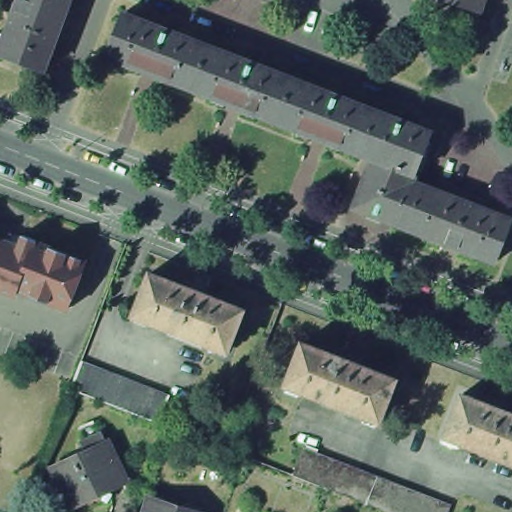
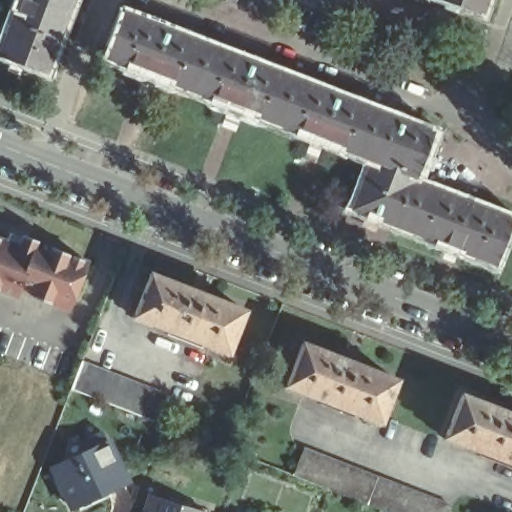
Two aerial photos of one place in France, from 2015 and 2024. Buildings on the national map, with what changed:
unchanged [(0,57),(0,32),(12,0),(64,0),(36,71),(0,57)]
unchanged [(460,0),(477,0),(475,5),(460,0)]
unchanged [(425,136),(407,185),(507,224),(491,266),(349,211),(366,169),(369,163),(100,59),(117,16),(425,136)]
unchanged [(4,237),(17,242),(17,239),(32,245),(32,246),(82,265),(63,314),(12,295),(11,300),(0,297),(0,245),(1,245),(4,237)]
unchanged [(239,314),(225,353),(207,347),(206,349),(146,325),(147,323),(129,316),(145,277),(239,314)]
unchanged [(391,383),(375,423),(359,416),(357,418),(297,395),(298,393),(282,386),(297,347),(391,383)]
unchanged [(71,361),(160,395),(150,423),(60,388),(71,361)]
unchanged [(512,417),(512,463),(512,464),(452,441),(452,439),(436,433),(451,393),(512,417)]
unchanged [(67,510),(47,472),(80,454),(75,446),(94,436),(98,444),(119,482),(67,510)]
unchanged [(297,452),(446,509),(444,512),(370,512),(345,502),(322,493),(287,480),(297,452)]
unchanged [(145,493),(202,510),(201,512),(139,512),(145,493)]

